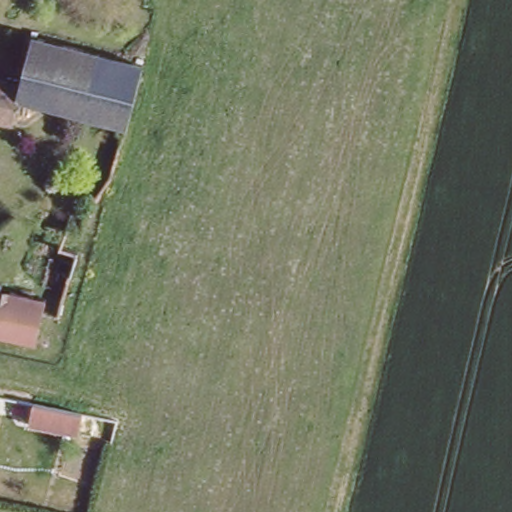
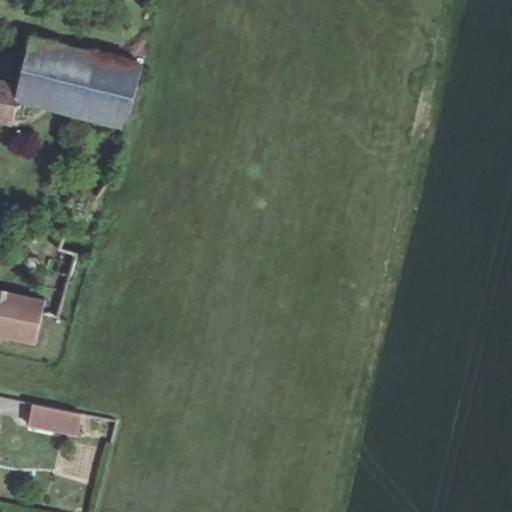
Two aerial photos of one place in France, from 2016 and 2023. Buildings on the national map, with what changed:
unchanged [(31,31),(141,61),(125,126),(17,96),(14,122),(0,120),(0,78),(20,81),(31,31)]
unchanged [(61,250),(76,253),(71,275),(55,271),(61,250)]
unchanged [(39,339),(38,343),(0,336),(0,291),(45,301),(39,339)]
unchanged [(31,401),(35,402),(85,412),(80,436),(26,425),(31,401)]

